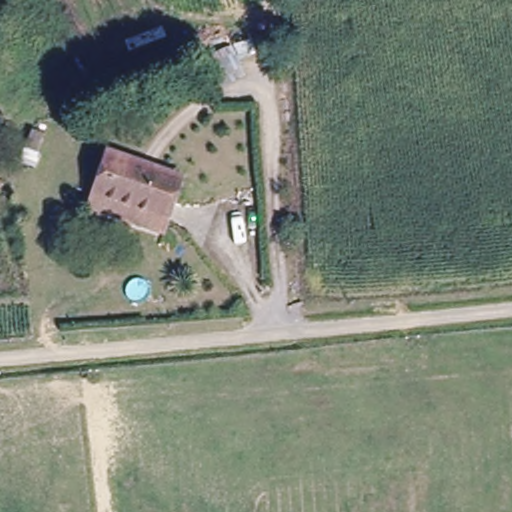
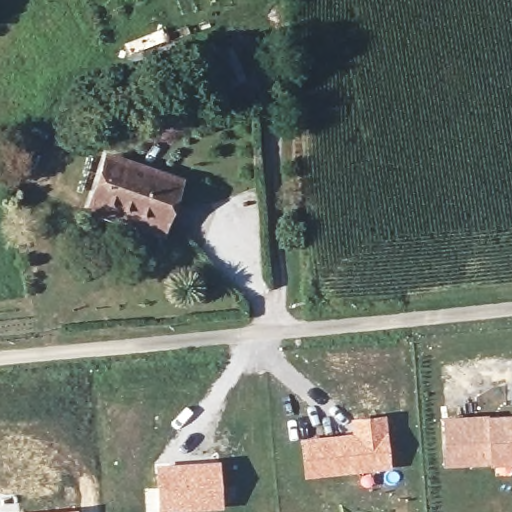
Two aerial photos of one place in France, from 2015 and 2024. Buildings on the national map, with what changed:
unchanged [(202,85),(196,74),(204,70),(209,80),(202,85)]
unchanged [(106,151),(182,179),(162,239),(85,210),(106,151)]
new [(512,412),(512,462),(444,465),(440,417),(477,413),(512,412)]
new [(351,431),(350,418),(385,414),(391,467),(361,472),(302,477),(298,437),(351,431)]
new [(224,508),(164,512),(157,512),(153,465),(220,458),(224,508)]
new [(77,512),(31,512),(77,507),(77,512)]

